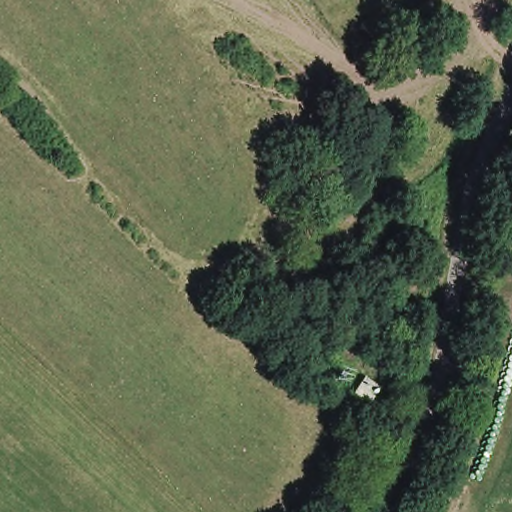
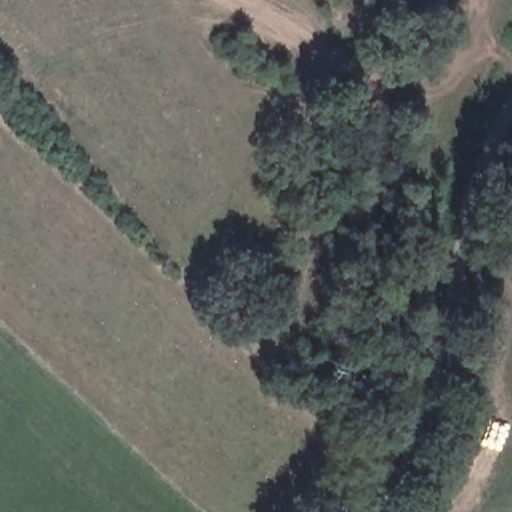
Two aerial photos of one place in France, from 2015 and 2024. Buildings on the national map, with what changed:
unchanged [(360,372),(385,381),(372,402),(349,389),(360,372)]

